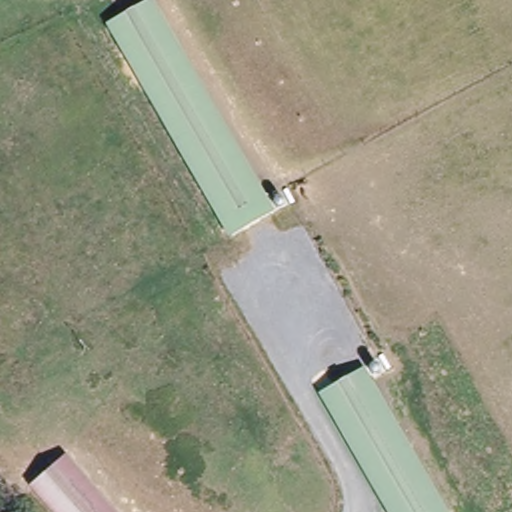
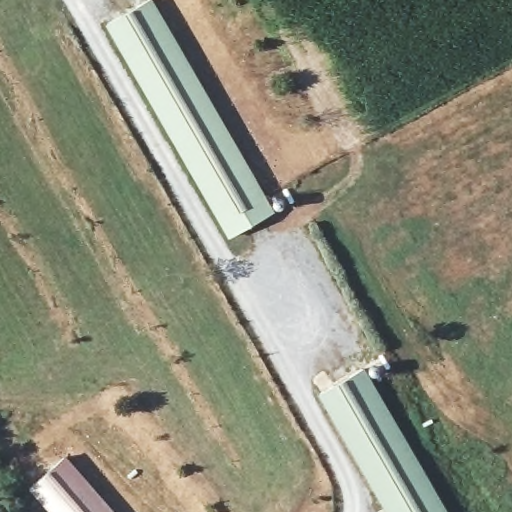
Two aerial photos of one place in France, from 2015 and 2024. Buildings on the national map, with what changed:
unchanged [(270,214),(231,236),(109,25),(149,1),(270,214)]
unchanged [(393,512),(323,392),(364,369),(446,512),(393,512)]
unchanged [(52,512),(29,485),(63,455),(112,512),(52,512)]

